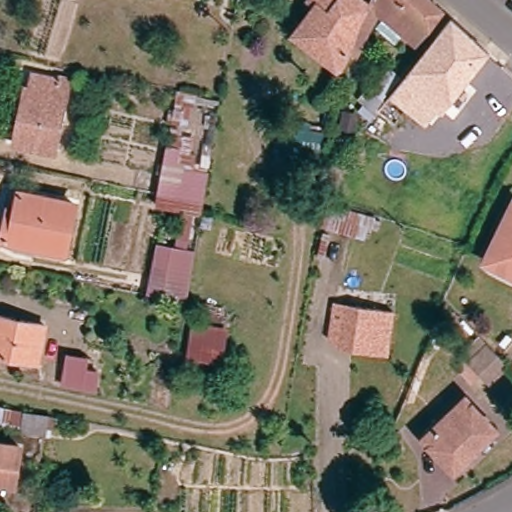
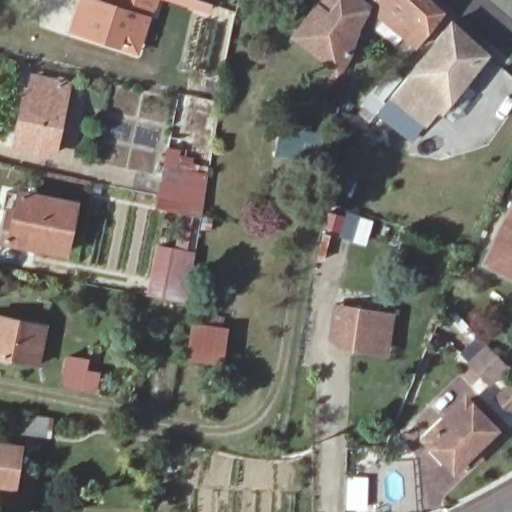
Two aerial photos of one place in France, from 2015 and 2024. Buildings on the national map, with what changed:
new [(100,1),(100,0),(157,0),(138,57),(67,34),(77,0),(98,0),(100,1)]
new [(214,5),(210,15),(162,0),(200,0),(214,5)]
unchanged [(337,7),(358,26),(348,55),(339,67),(295,32),(312,10),(306,4),(308,0),(342,0),(337,7)]
unchanged [(443,16),(442,16),(441,19),(416,47),(377,19),(357,57),(351,54),(364,21),(373,0),(424,0),(443,16)]
unchanged [(380,103),(383,106),(450,27),(487,56),(438,115),(435,111),(425,123),(408,111),(395,127),(377,112),(373,117),(361,106),(388,72),(398,81),(380,103)]
unchanged [(66,85),(50,156),(13,147),(24,93),(28,94),(32,79),(66,85)]
unchanged [(177,94),(223,106),(204,217),(155,209),(177,94)]
unchanged [(338,125),(353,125),(353,135),(338,135),(338,125)]
unchanged [(72,206),(62,256),(0,244),(9,200),(16,202),(18,195),(72,206)]
unchanged [(482,265),(512,203),(512,279),(482,265)]
unchanged [(368,219),(362,242),(320,230),(327,207),(368,219)]
unchanged [(155,242),(196,252),(188,302),(146,297),(155,242)]
unchanged [(390,317),(384,348),(337,340),(343,309),(390,317)]
unchanged [(36,366),(0,359),(0,320),(42,328),(36,366)]
unchanged [(191,322),(229,328),(225,366),(186,360),(191,322)]
unchanged [(507,366),(488,384),(470,365),(487,347),(507,366)]
unchanged [(90,363),(89,375),(96,376),(94,392),(61,387),(66,358),(90,363)]
unchanged [(492,431),(461,462),(455,456),(445,466),(422,442),(464,402),(492,431)]
unchanged [(0,414),(0,407),(2,407),(0,414)]
unchanged [(56,417),(53,432),(30,428),(32,412),(56,417)]
unchanged [(27,487),(0,483),(0,445),(33,451),(27,487)]

